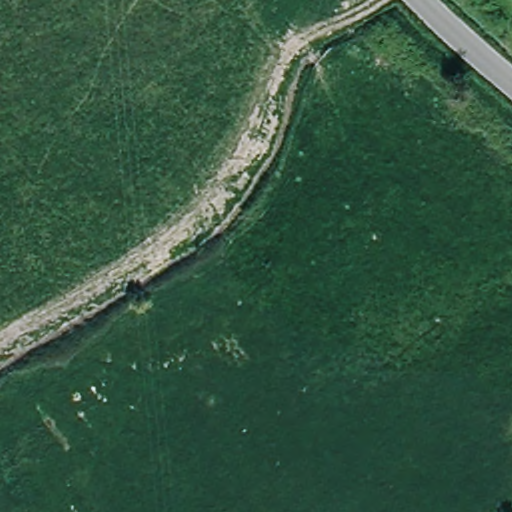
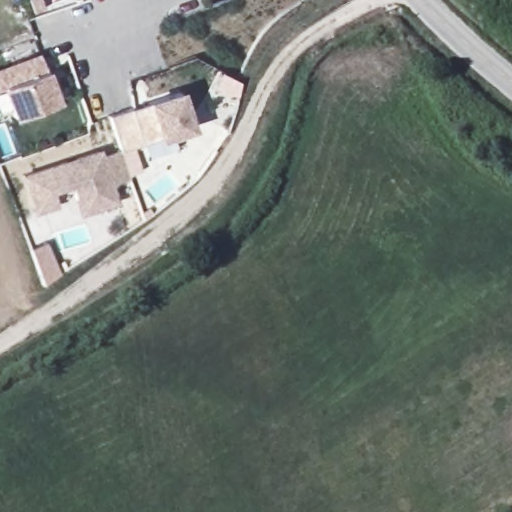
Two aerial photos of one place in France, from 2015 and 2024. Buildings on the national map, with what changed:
new [(59,102),(18,118),(5,87),(0,89),(0,71),(41,55),(59,102)]
new [(108,116),(130,107),(148,100),(181,89),(195,130),(160,142),(158,137),(141,142),(120,150),(108,116)]
new [(99,151),(101,156),(120,150),(129,177),(110,184),(117,201),(81,214),(71,185),(53,192),(58,205),(35,212),(23,177),(99,151)]
new [(45,285),(41,272),(32,250),(48,244),(56,266),(59,275),(45,285)]

